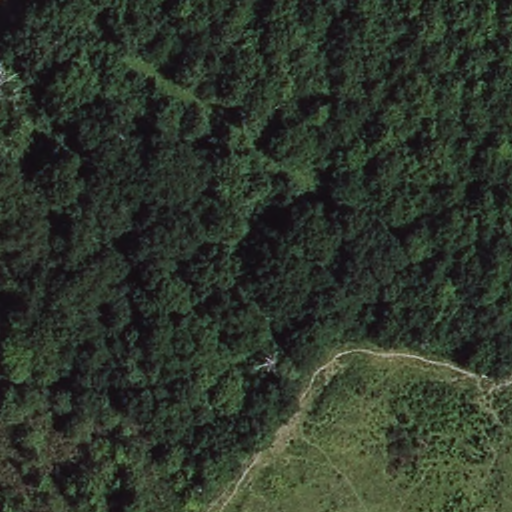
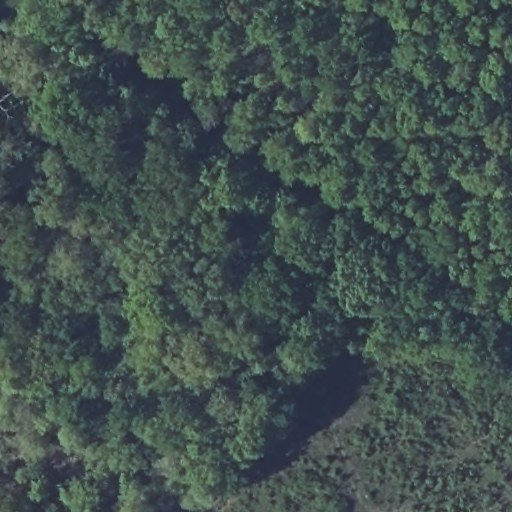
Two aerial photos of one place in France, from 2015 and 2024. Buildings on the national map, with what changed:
[]

